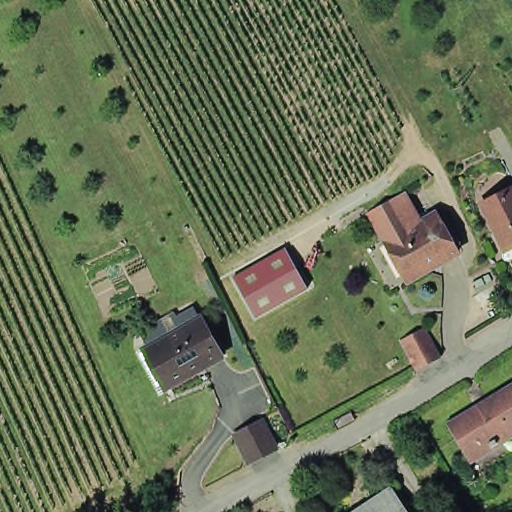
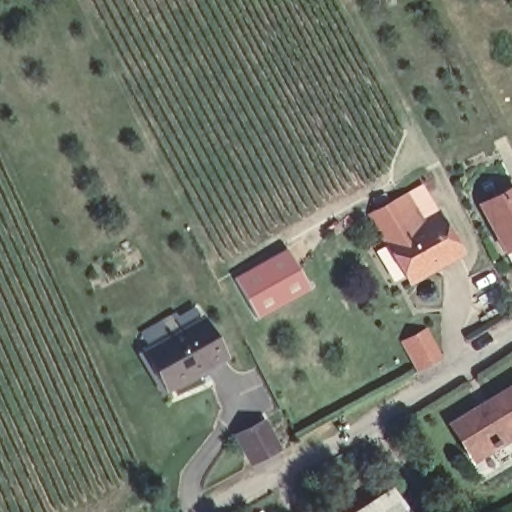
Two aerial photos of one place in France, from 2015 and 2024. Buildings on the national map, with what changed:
unchanged [(367,215),(423,184),(443,215),(438,219),(460,260),(405,291),(367,215)]
unchanged [(481,205),(512,191),(512,252),(502,257),(481,205)]
unchanged [(310,289),(262,318),(242,283),(290,252),(310,289)]
unchanged [(182,388),(162,350),(213,322),(235,363),(212,376),(210,372),(182,388)]
unchanged [(433,335),(447,363),(422,377),(407,349),(433,335)]
unchanged [(449,418),(512,382),(512,426),(468,452),(449,418)]
unchanged [(282,450),(255,463),(242,437),(268,424),(282,450)]
unchanged [(401,512),(357,512),(390,492),(401,512)]

